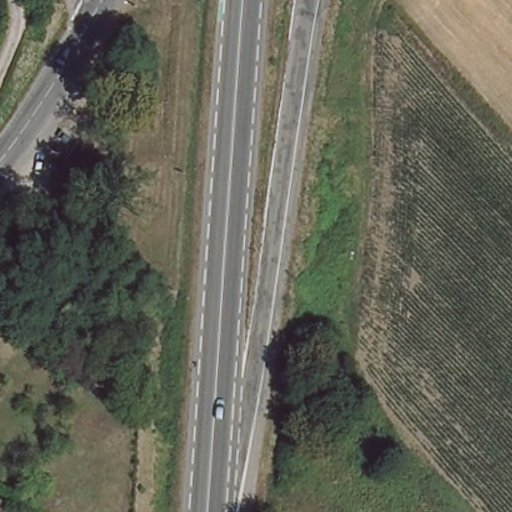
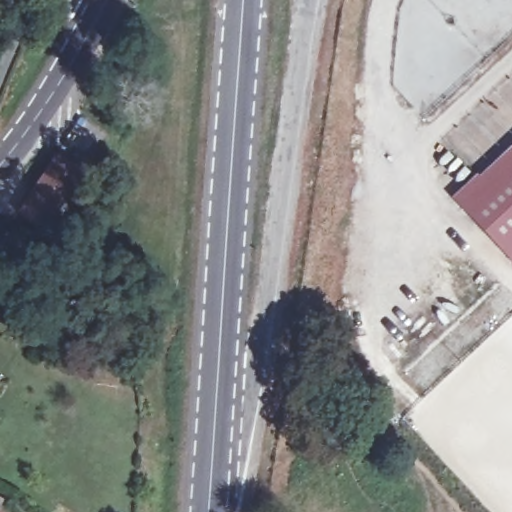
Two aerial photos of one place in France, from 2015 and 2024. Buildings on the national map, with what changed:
new [(512,144),(512,259),(454,197),(512,144)]
new [(80,172),(48,221),(23,203),(55,157),(80,172)]

